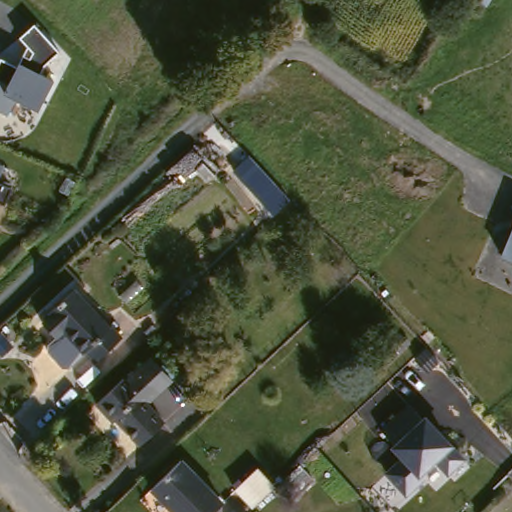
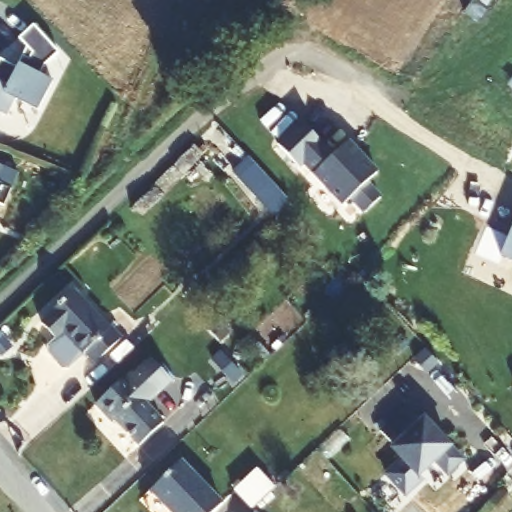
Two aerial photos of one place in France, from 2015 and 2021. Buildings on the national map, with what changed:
unchanged [(51,65),(45,71),(61,78),(43,111),(26,101),(14,121),(0,114),(0,64),(5,55),(19,63),(31,50),(24,34),(43,23),(65,53),(51,65)]
new [(337,154),(350,141),(381,172),(370,183),(383,197),(364,215),(350,200),(342,207),(303,164),(300,166),(277,142),(301,118),(337,154)]
unchanged [(274,216),(234,175),(249,160),(263,174),(289,203),(274,216)]
unchanged [(2,180),(9,183),(0,203),(0,162),(9,166),(2,180)]
unchanged [(500,257),(512,228),(512,262),(500,257)]
unchanged [(70,367),(62,367),(48,353),(48,346),(56,340),(42,325),(49,318),(48,317),(74,292),(110,329),(111,328),(122,340),(96,364),(85,354),(84,355),(63,333),(83,354),(70,367)]
unchanged [(164,425),(139,447),(116,421),(114,424),(96,405),(123,380),(125,383),(151,359),(170,383),(146,406),(164,425)]
unchanged [(382,433),(411,407),(424,417),(457,447),(466,461),(445,478),(436,465),(408,495),(384,474),(400,457),(382,433)]
unchanged [(151,491),(181,462),(222,504),(214,512),(172,512),(151,491)]
unchanged [(275,489),(253,510),(236,492),(258,471),(275,489)]

